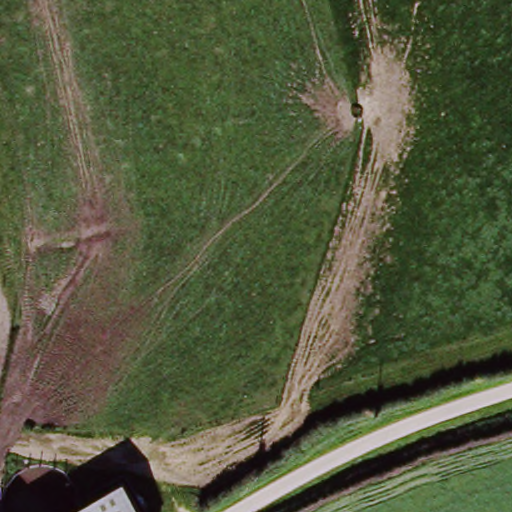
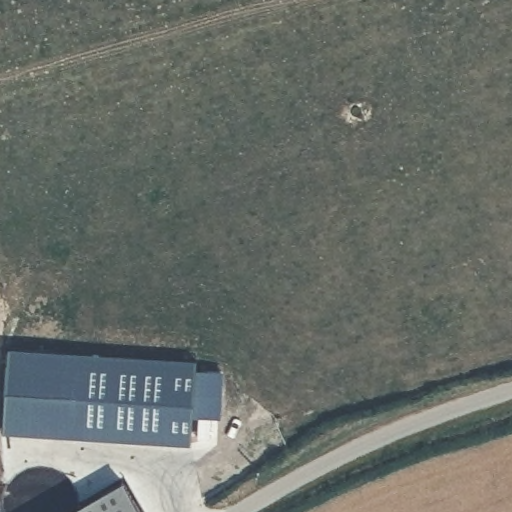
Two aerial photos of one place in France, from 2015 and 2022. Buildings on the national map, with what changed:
new [(199,358),(194,442),(3,431),(9,346),(199,358)]
unchanged [(130,478),(150,512),(67,512),(130,478)]

